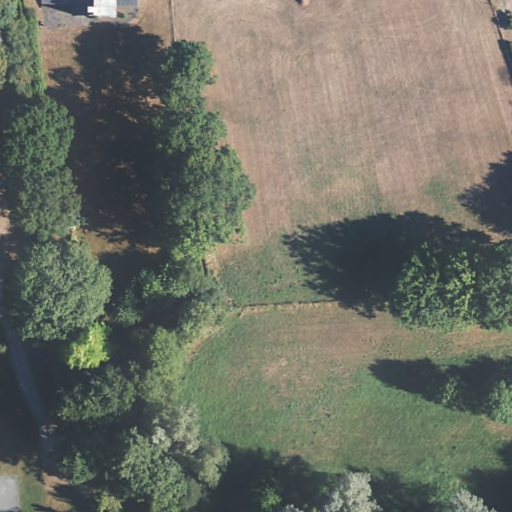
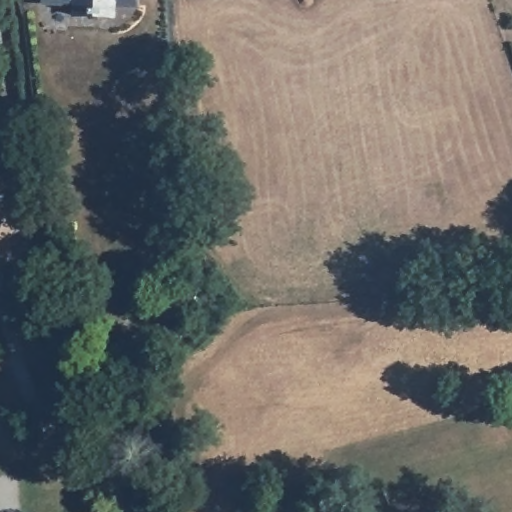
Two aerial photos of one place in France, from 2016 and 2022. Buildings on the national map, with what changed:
unchanged [(129,10),(109,11),(108,21),(69,20),(69,9),(39,7),(39,0),(129,0),(129,10)]

